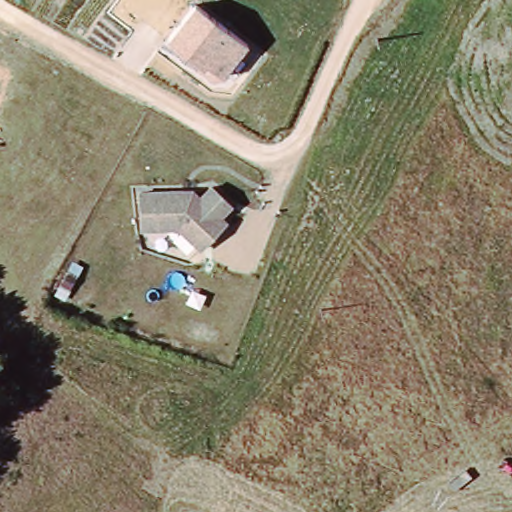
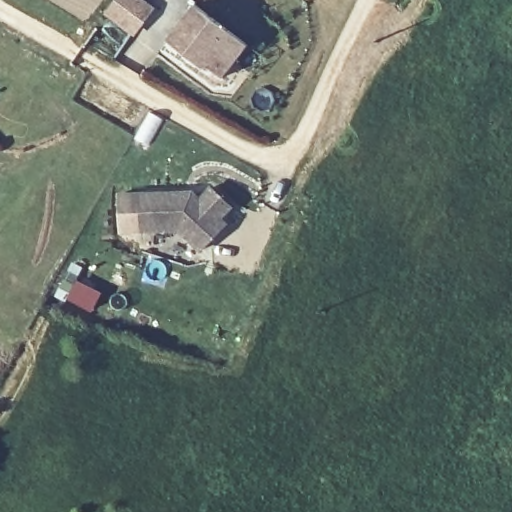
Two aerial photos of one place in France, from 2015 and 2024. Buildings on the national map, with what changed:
new [(156,8),(134,37),(104,15),(115,0),(145,0),(156,8)]
unchanged [(248,46),(221,81),(166,42),(194,5),(248,46)]
unchanged [(144,195),(187,192),(187,194),(198,192),(204,198),(215,186),(234,205),(223,217),(229,222),(214,240),(205,249),(183,227),(146,230),(145,202),(144,195)]

